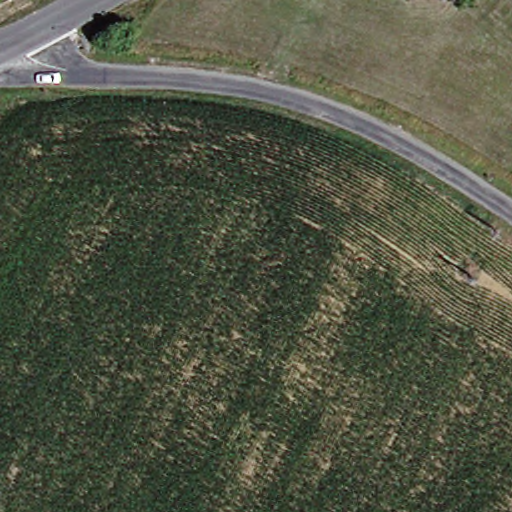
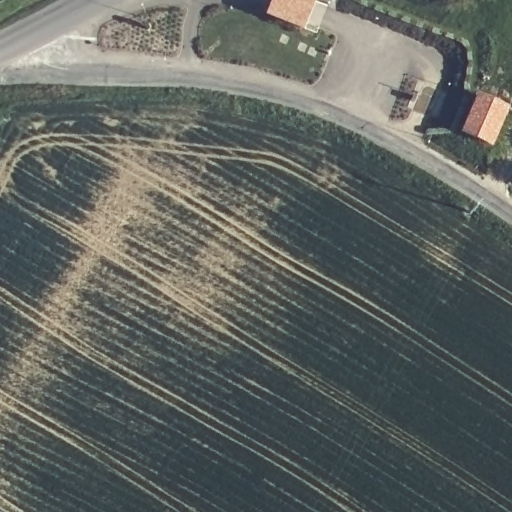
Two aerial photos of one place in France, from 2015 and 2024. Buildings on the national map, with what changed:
new [(263,17),(270,0),(314,0),(301,33),(263,17)]
new [(459,133),(476,93),(509,108),(491,148),(459,133)]

